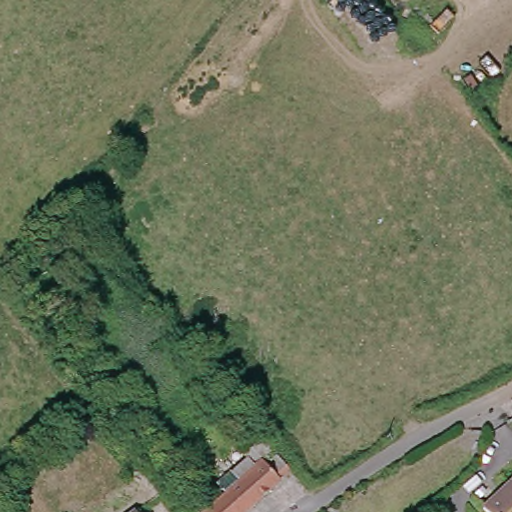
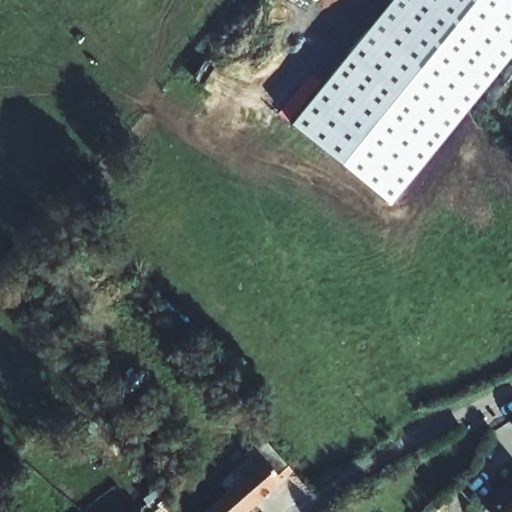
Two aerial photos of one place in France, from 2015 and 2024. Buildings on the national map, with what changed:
new [(290,124),(392,0),(512,0),(512,54),(390,204),(290,124)]
unchanged [(290,469),(243,512),(193,512),(220,489),(210,480),(263,438),(290,469)]
unchanged [(478,499),(512,465),(512,512),(491,512),(478,499)]
unchanged [(282,509),(275,499),(292,487),(300,497),(282,509)]
unchanged [(131,504),(137,512),(120,512),(131,504)]

